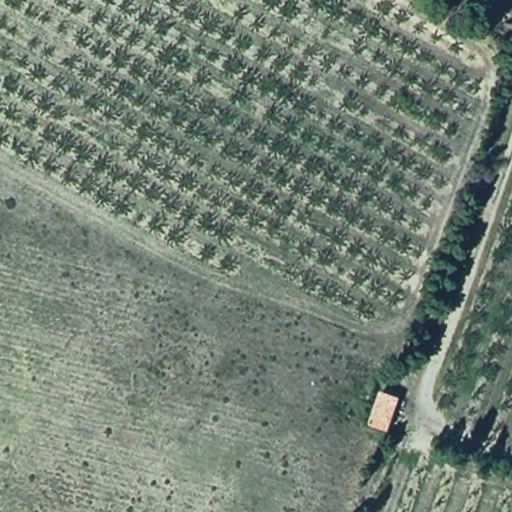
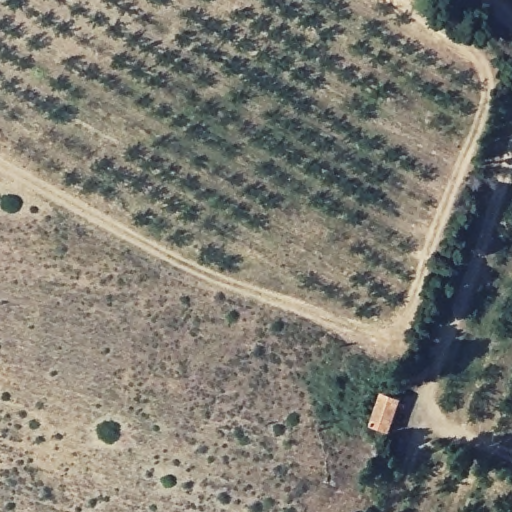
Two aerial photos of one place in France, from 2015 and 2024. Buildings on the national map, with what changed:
unchanged [(404,397),(391,432),(366,424),(375,386),(404,397)]

